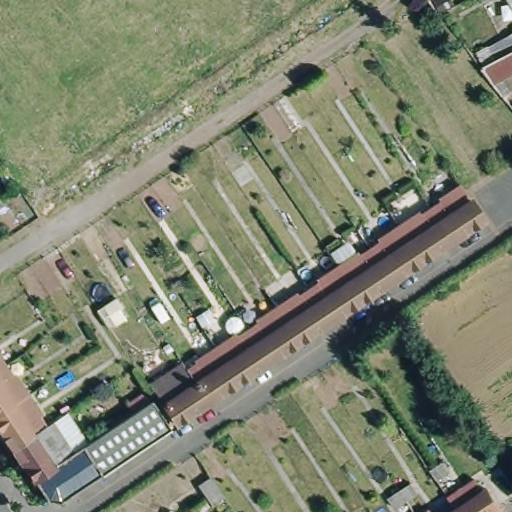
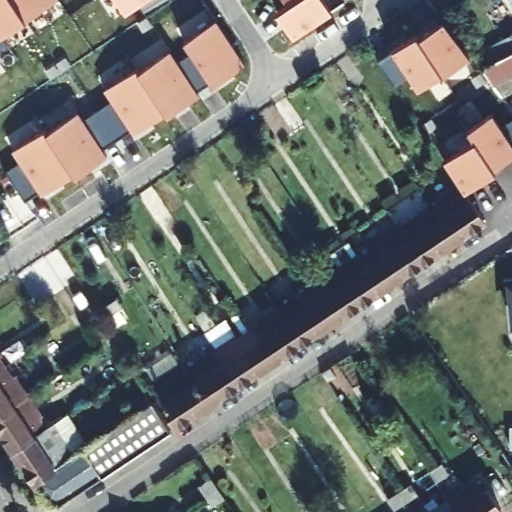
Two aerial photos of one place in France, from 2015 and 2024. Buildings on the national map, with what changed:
new [(0,0),(54,0),(57,6),(0,40),(0,0)]
new [(167,0),(121,31),(102,0),(167,0)]
new [(280,0),(308,0),(290,14),(280,0)]
new [(7,174),(18,167),(7,149),(35,127),(41,140),(72,115),(80,120),(108,105),(100,92),(216,17),(246,67),(25,205),(7,174)]
new [(391,50),(417,33),(420,38),(441,24),(469,57),(417,89),(391,50)]
unchanged [(500,91),(490,79),(478,65),(512,48),(512,85),(500,91)]
new [(445,161),(473,140),(465,130),(493,109),(512,137),(512,160),(465,191),(445,161)]
unchanged [(451,243),(450,244),(430,214),(429,211),(428,211),(440,203),(439,201),(461,186),(485,221),(451,243)]
unchanged [(430,214),(450,244),(208,405),(195,385),(189,377),(430,214)]
new [(505,277),(512,276),(512,300),(509,300),(505,277)]
unchanged [(198,411),(176,426),(150,387),(181,366),(186,372),(189,377),(195,385),(208,405),(198,411)]
unchanged [(0,386),(14,406),(34,436),(50,425),(60,440),(68,451),(72,457),(33,483),(12,450),(0,433),(0,386)]
unchanged [(46,501),(33,483),(72,457),(84,450),(105,435),(155,402),(172,429),(123,461),(101,476),(59,505),(46,501)]
unchanged [(440,466),(447,477),(436,485),(431,477),(429,474),(440,466)]
unchanged [(452,501),(480,483),(487,495),(491,492),(505,512),(435,512),(452,501)]
unchanged [(410,487),(416,497),(405,505),(393,512),(387,501),(398,494),(410,487)]

